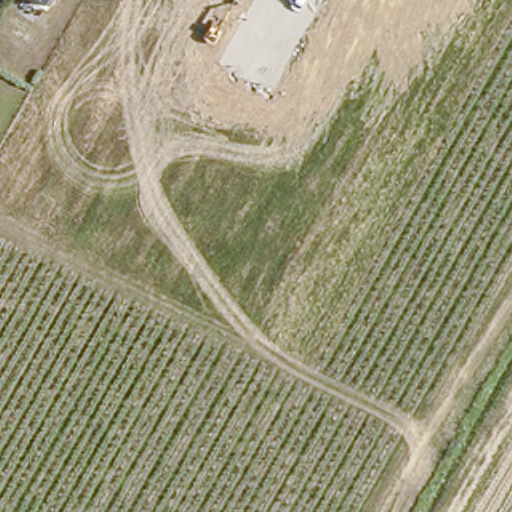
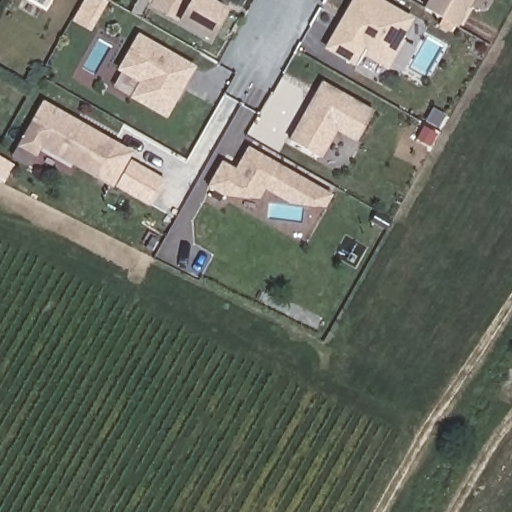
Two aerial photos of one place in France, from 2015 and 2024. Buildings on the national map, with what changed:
unchanged [(32,0),(52,0),(47,8),(32,0)]
new [(177,23),(149,6),(153,0),(190,0),(177,23)]
new [(210,40),(177,23),(190,0),(212,0),(229,10),(210,40)]
new [(402,38),(405,39),(387,69),(361,55),(355,66),(323,48),(351,0),(384,0),(415,17),(402,38)]
new [(458,26),(424,7),(428,0),(473,0),(458,26)]
new [(167,118),(129,97),(138,83),(116,70),(139,32),(196,66),(167,118)]
new [(357,142),(337,131),(321,158),(289,140),(321,81),(375,110),(357,142)]
new [(96,178),(42,148),(37,157),(16,146),(44,99),(117,142),(96,178)]
new [(289,204),(265,190),(259,199),(221,195),(206,186),(221,159),(235,168),(248,145),(333,195),(326,208),(289,204)]
new [(147,206),(115,187),(128,164),(160,183),(147,206)]

